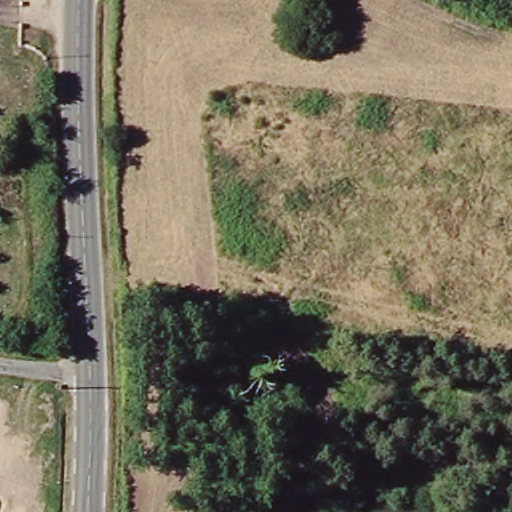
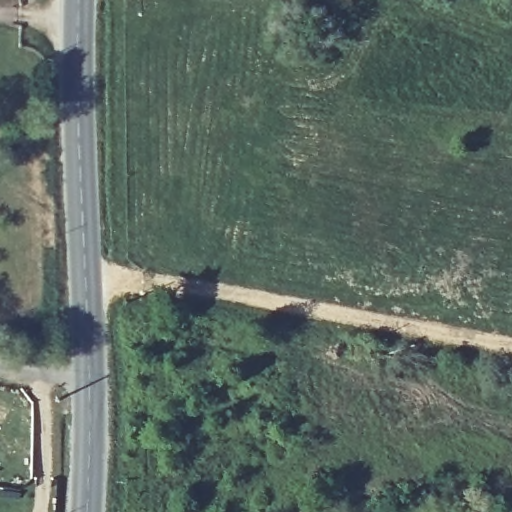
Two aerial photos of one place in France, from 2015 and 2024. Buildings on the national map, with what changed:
[]

